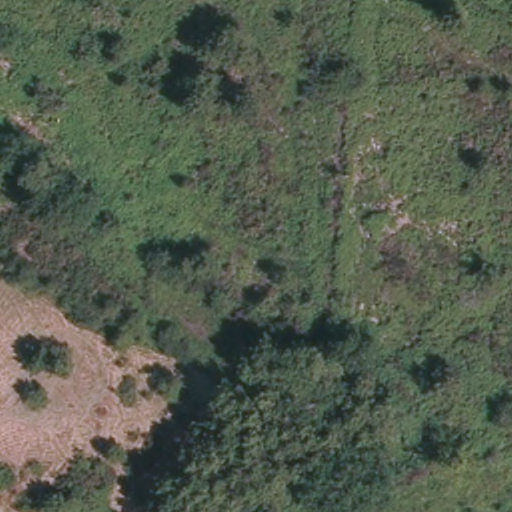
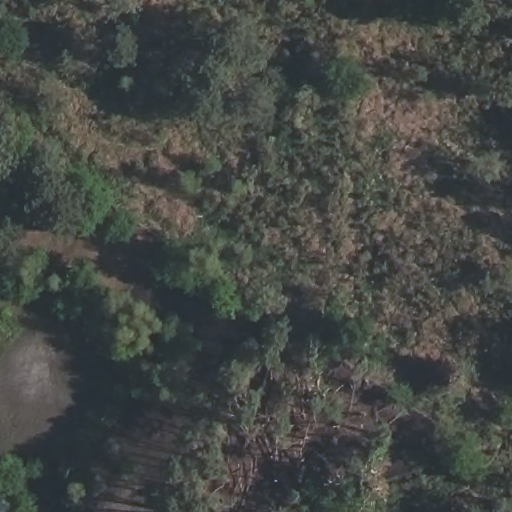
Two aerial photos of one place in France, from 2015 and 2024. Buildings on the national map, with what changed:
[]

